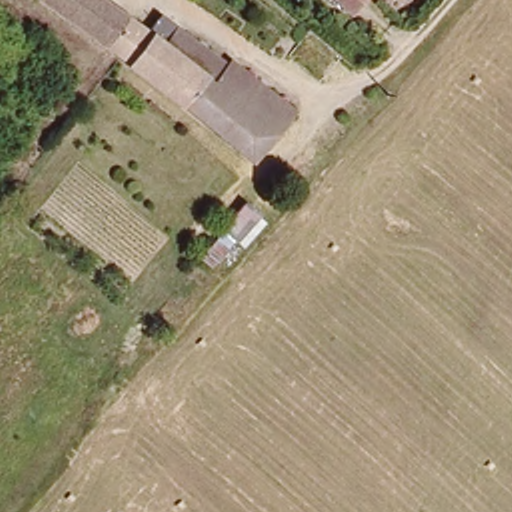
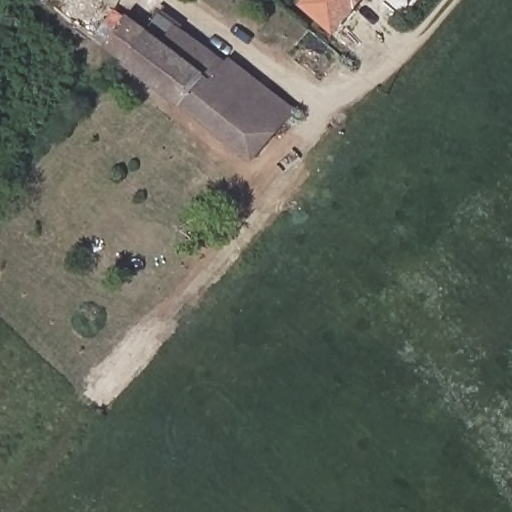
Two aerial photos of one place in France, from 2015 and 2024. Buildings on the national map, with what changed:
unchanged [(252,155),(178,101),(157,86),(113,54),(60,16),(39,0),(107,0),(151,31),(161,16),(175,25),(212,45),(236,64),(288,105),(252,155)]
new [(336,35),(301,6),(306,0),(349,0),(357,7),(360,8),(336,35)]
unchanged [(349,0),(363,0),(357,7),(349,0)]
unchanged [(268,216),(244,244),(226,229),(252,200),(268,216)]

